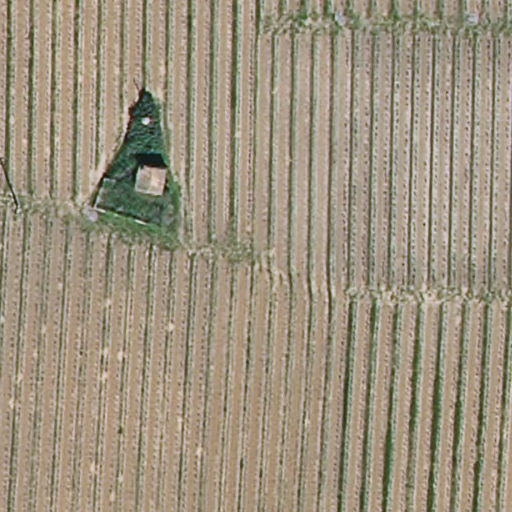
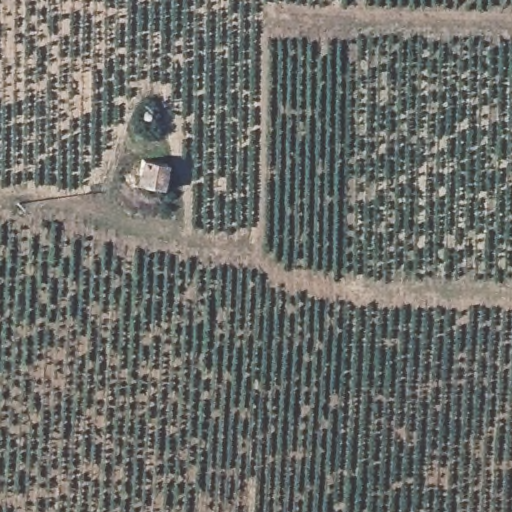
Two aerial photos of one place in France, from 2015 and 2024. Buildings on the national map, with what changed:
unchanged [(171,165),(162,190),(137,184),(145,157),(171,165)]

